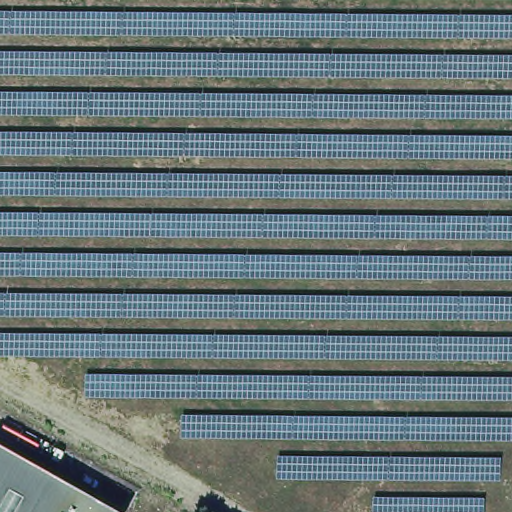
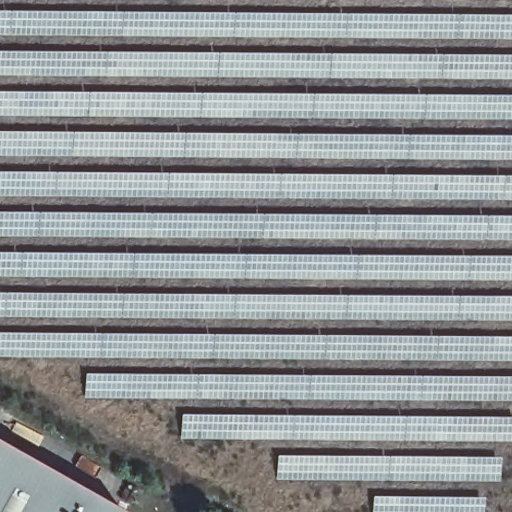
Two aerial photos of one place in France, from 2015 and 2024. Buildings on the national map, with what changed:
unchanged [(0,441),(123,509),(121,512),(0,512),(0,441)]

